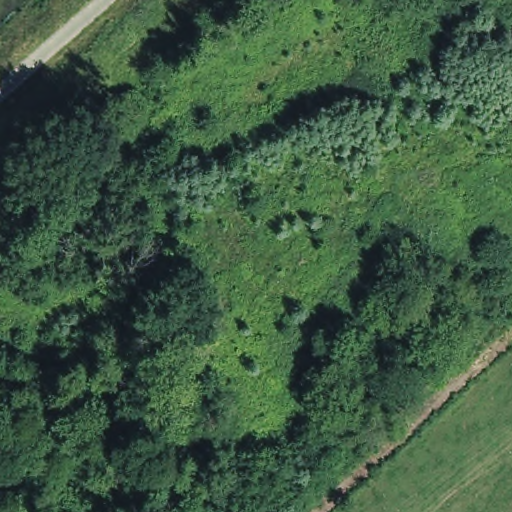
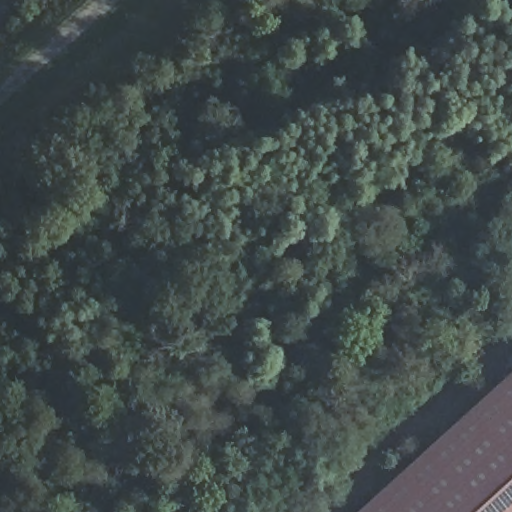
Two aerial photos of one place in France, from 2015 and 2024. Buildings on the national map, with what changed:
new [(356,512),(512,369),(512,512),(356,512)]

